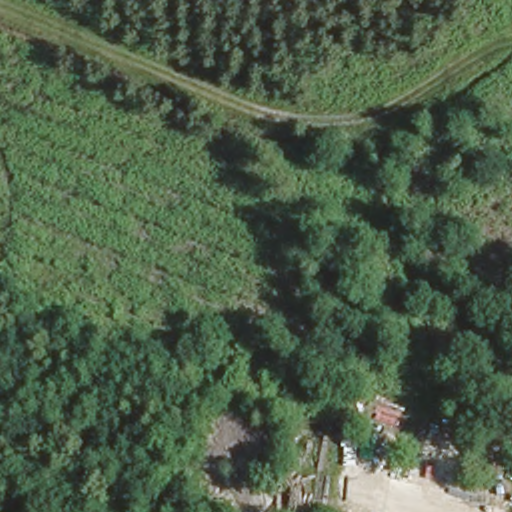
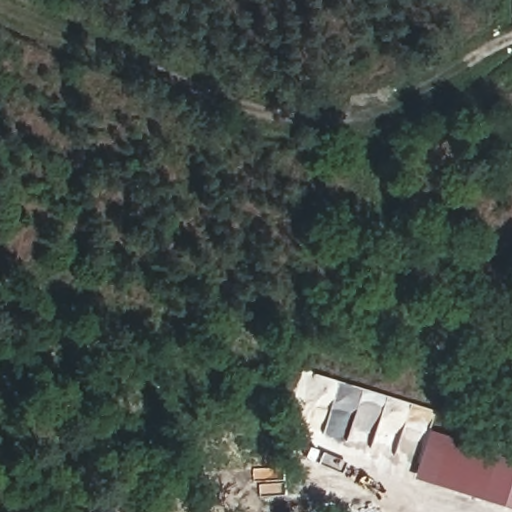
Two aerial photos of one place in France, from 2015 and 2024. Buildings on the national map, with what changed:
new [(428,429),(474,439),(461,492),(414,477),(428,429)]
new [(474,439),(512,448),(512,508),(461,492),(474,439)]

